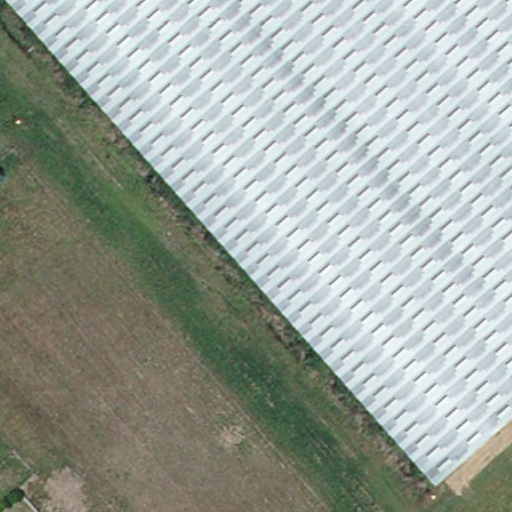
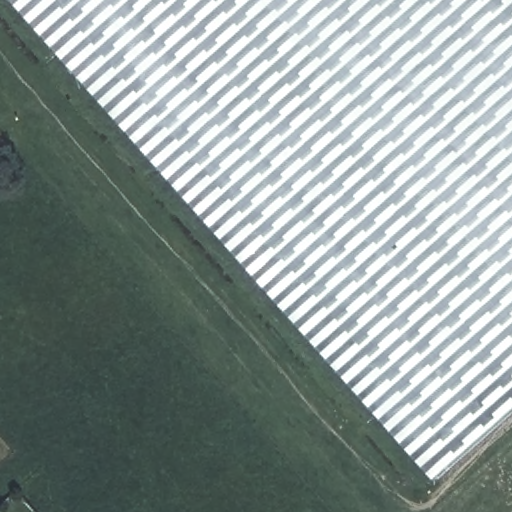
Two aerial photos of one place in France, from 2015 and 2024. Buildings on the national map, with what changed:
unchanged [(106,119),(1,0),(240,0),(106,119)]
unchanged [(106,119),(240,0),(512,0),(512,401),(424,479),(106,119)]

